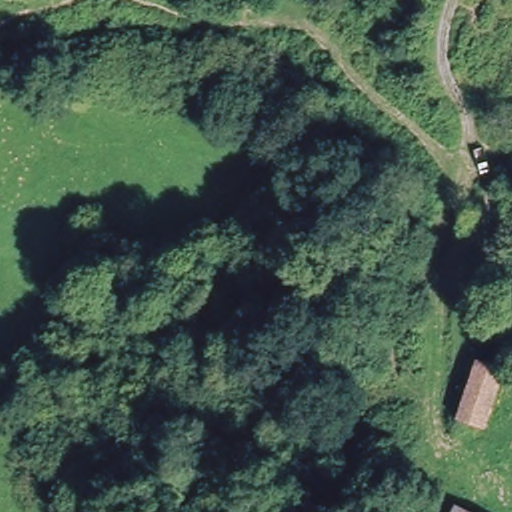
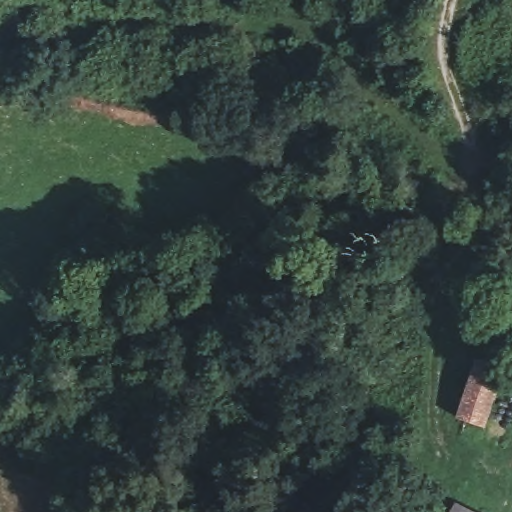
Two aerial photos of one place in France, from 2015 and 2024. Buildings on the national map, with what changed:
unchanged [(473,359),(501,366),(481,427),(455,421),(473,359)]
unchanged [(462,512),(445,512),(447,506),(462,512)]

